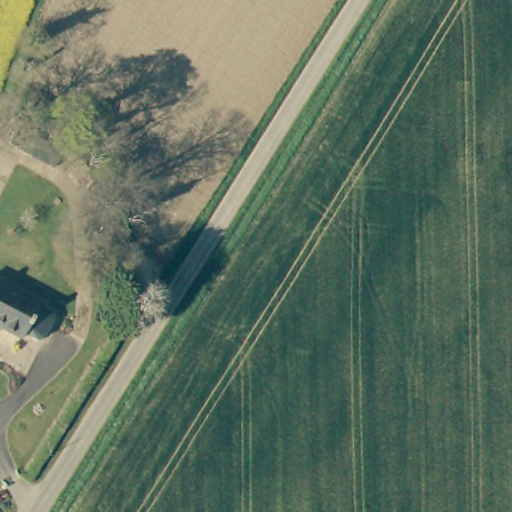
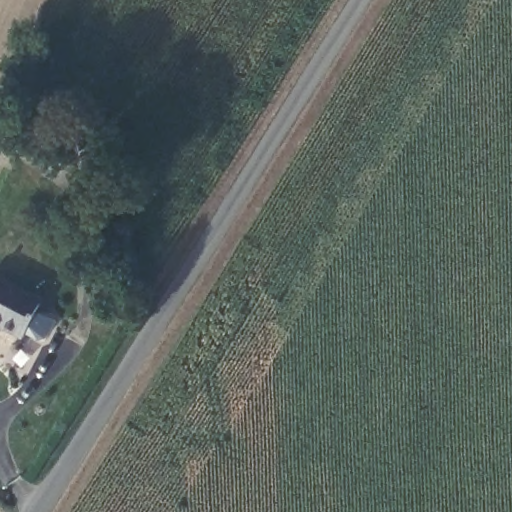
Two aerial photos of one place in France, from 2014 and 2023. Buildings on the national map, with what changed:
unchanged [(25,132),(16,148),(0,135),(0,114),(25,132)]
unchanged [(37,307),(35,310),(48,318),(49,325),(37,342),(30,343),(18,335),(15,340),(0,330),(0,282),(37,307)]

